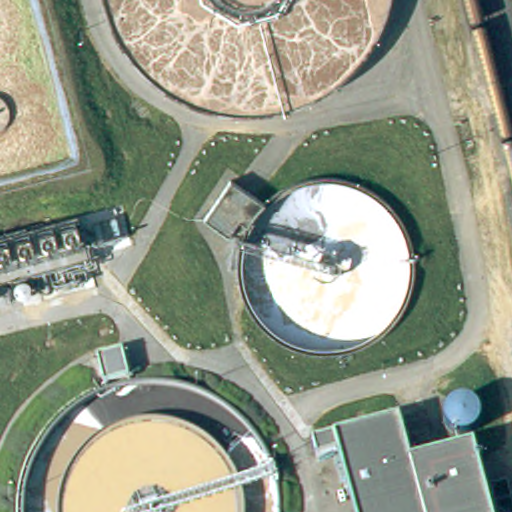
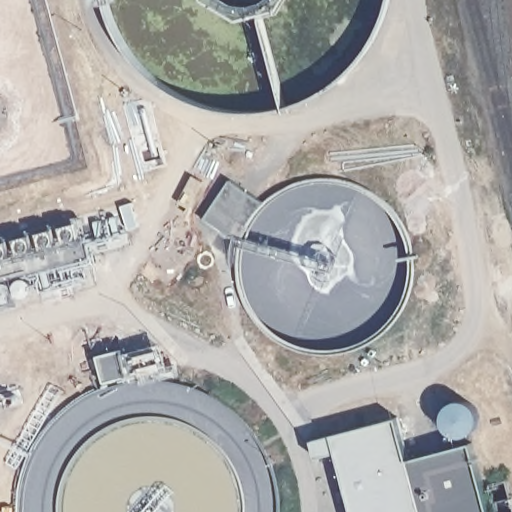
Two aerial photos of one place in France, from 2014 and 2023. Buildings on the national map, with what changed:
unchanged [(258,201),(238,233),(205,212),(225,180),(258,201)]
unchanged [(95,249),(0,277),(0,230),(82,207),(95,249)]
unchanged [(133,351),(140,375),(92,387),(86,363),(133,351)]
unchanged [(464,403),(468,400),(473,397),(478,396),(484,397),(488,400),(492,403),(494,408),(495,413),(494,419),(490,425),(485,427),(480,428),(475,428),(470,426),(465,422),(462,418),(462,412),(462,407),(464,403)]
unchanged [(319,450),(315,436),(404,413),(415,456),(484,437),(503,512),(355,512),(338,445),(319,450)]

